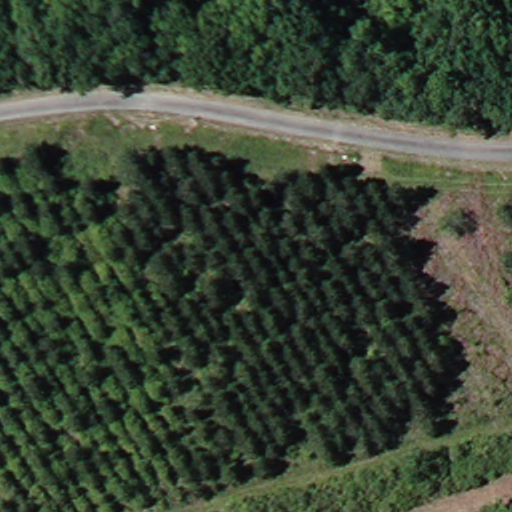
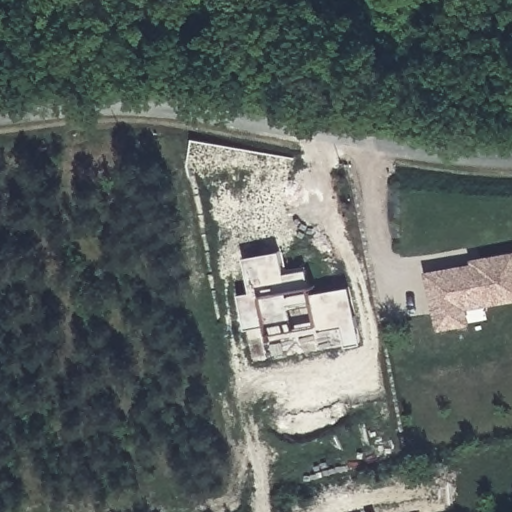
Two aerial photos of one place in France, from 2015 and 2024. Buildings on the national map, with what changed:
new [(473,256),(512,248),(512,300),(467,307),(470,325),(436,330),(426,269),(473,261),(473,256)]
new [(266,340),(263,326),(243,330),(236,294),(248,291),(242,256),(278,250),(282,273),(305,269),(310,293),(347,287),(354,325),(340,327),(315,332),(291,336),(266,340)]

